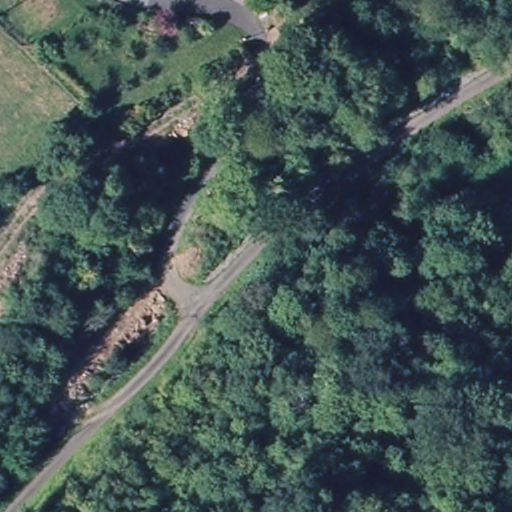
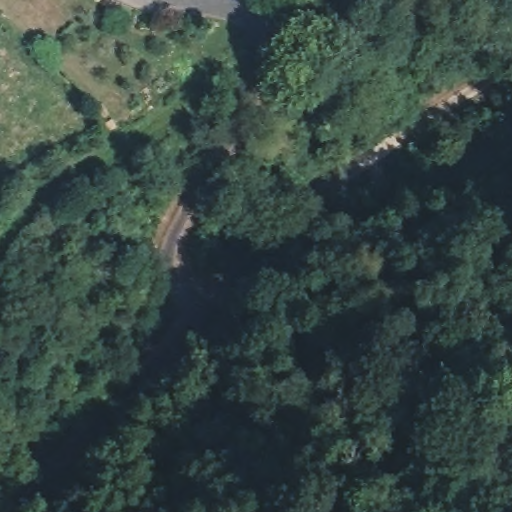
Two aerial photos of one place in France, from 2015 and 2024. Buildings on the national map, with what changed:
unchanged [(239,4),(236,0),(243,0),(239,4)]

